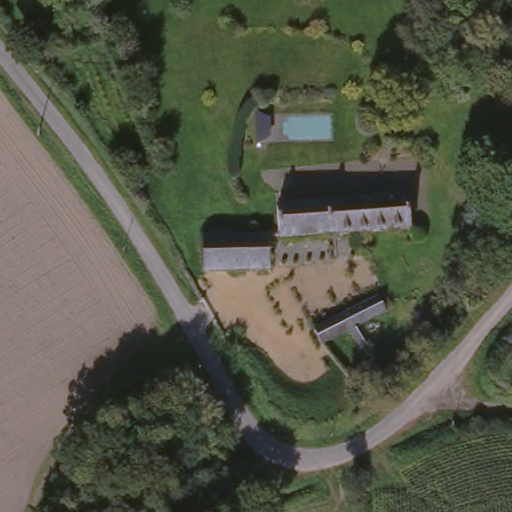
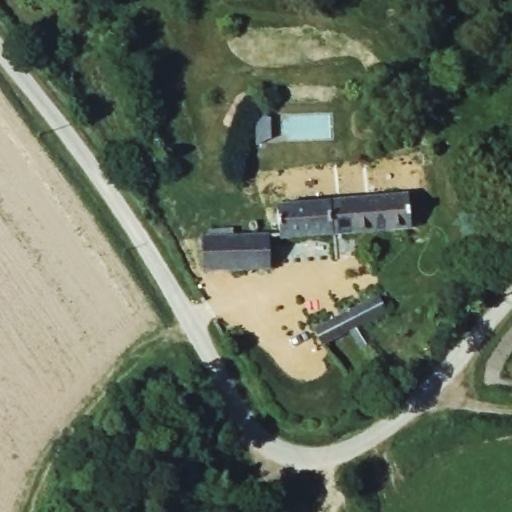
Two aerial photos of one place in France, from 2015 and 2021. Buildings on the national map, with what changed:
unchanged [(406,192),(409,227),(281,242),(276,205),(406,192)]
unchanged [(263,230),(266,267),(203,271),(202,234),(263,230)]
unchanged [(358,353),(346,358),(336,337),(313,350),(302,333),(370,296),(378,312),(348,331),(346,332),(354,343),(358,353)]

